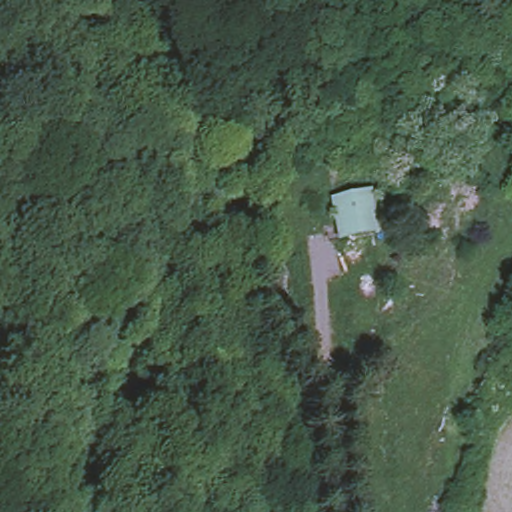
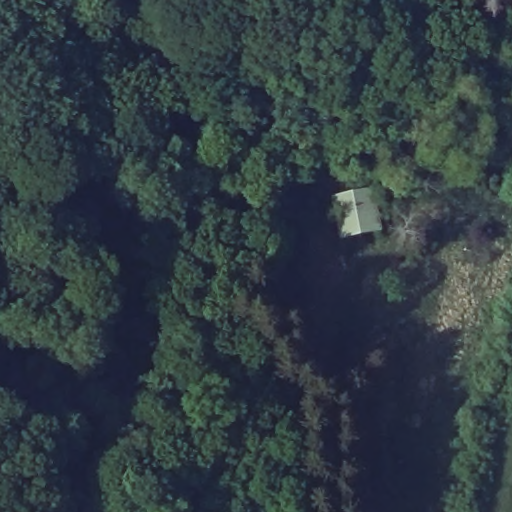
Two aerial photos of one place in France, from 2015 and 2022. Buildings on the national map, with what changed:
unchanged [(335,237),(330,195),(372,187),(376,231),(335,237)]

